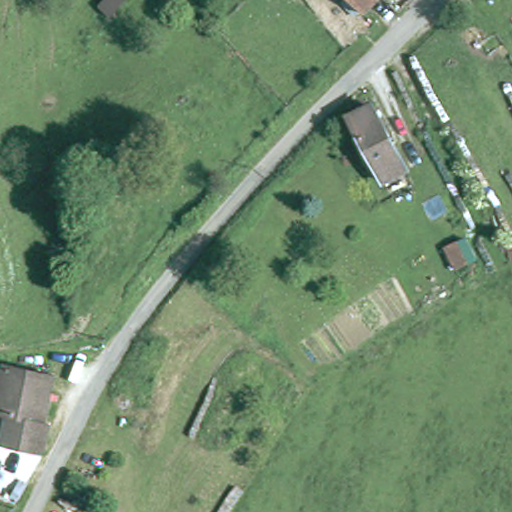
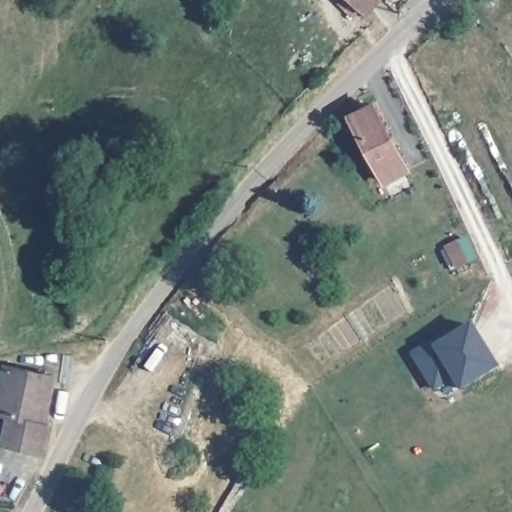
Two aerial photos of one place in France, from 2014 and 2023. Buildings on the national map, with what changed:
unchanged [(372,0),(365,6),(358,0),(372,0)]
unchanged [(351,116),(374,103),(410,164),(389,178),(351,116)]
new [(498,363),(462,384),(454,373),(435,384),(413,350),(435,338),(437,342),(472,321),(498,363)]
unchanged [(50,413),(58,417),(48,446),(7,436),(13,414),(2,409),(5,402),(0,400),(0,361),(61,370),(50,413)]

